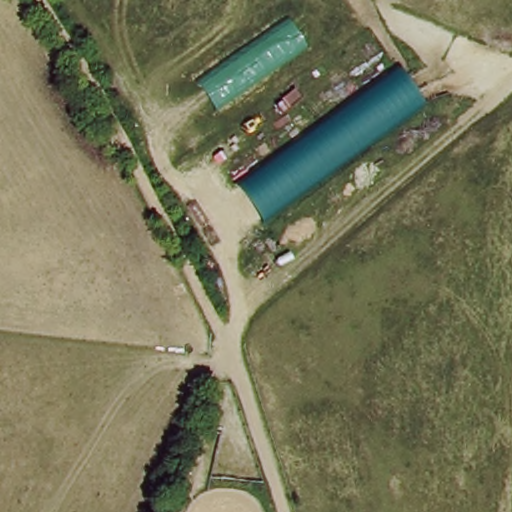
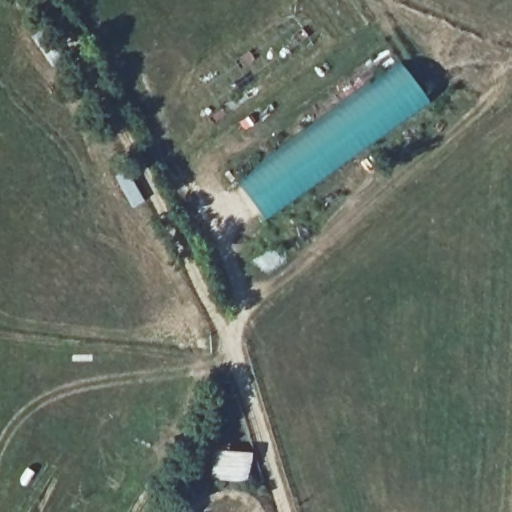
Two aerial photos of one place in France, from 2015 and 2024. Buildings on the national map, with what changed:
unchanged [(237,182),(401,67),(430,107),(269,224),(237,182)]

